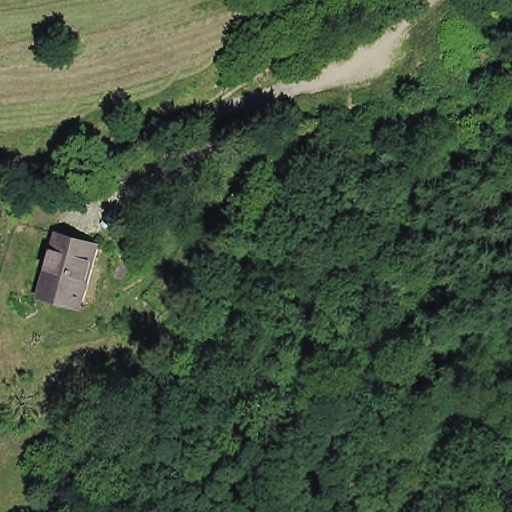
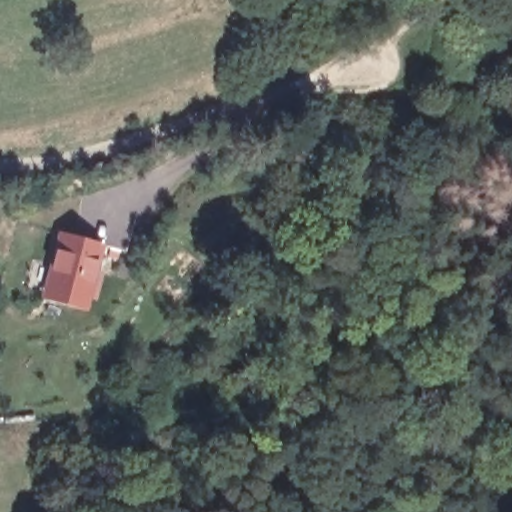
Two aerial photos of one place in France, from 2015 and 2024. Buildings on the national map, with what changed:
unchanged [(48,292),(57,259),(51,257),(58,235),(100,247),(84,302),(48,292)]

